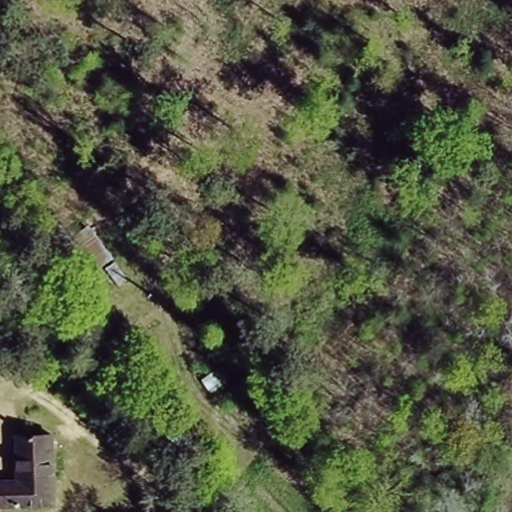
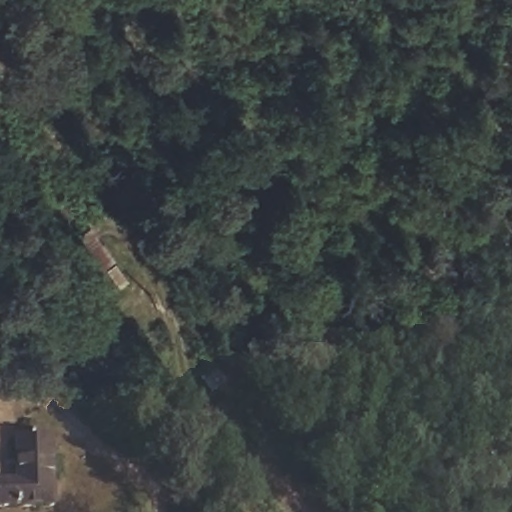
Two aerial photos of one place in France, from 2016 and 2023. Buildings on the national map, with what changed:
unchanged [(0,511),(0,478),(17,479),(15,437),(55,436),(56,507),(0,511)]

